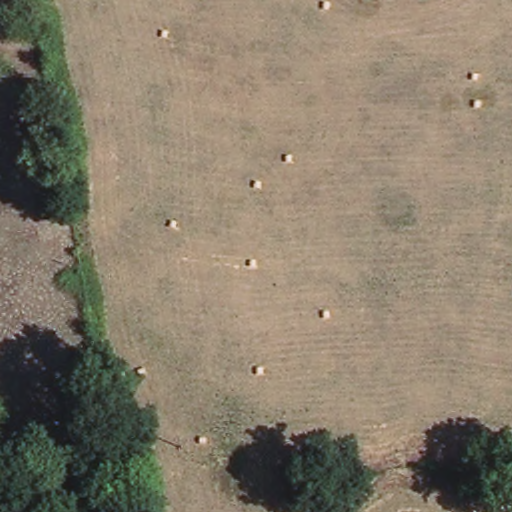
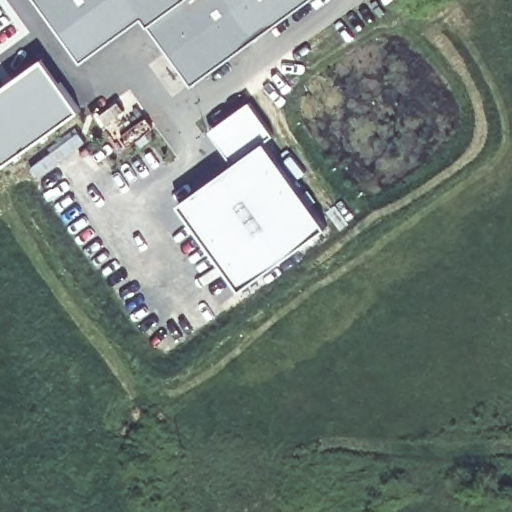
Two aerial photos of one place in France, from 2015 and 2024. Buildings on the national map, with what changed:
new [(192,82),(143,15),(83,59),(40,0),(307,0),(192,82)]
new [(82,108),(5,163),(0,156),(0,85),(42,55),(82,108)]
new [(250,99),(273,134),(266,139),(232,161),(210,127),(250,99)]
new [(232,161),(266,139),(280,160),(291,152),(305,172),(297,177),(296,176),(292,178),(326,224),(242,287),(178,200),(232,161)]

